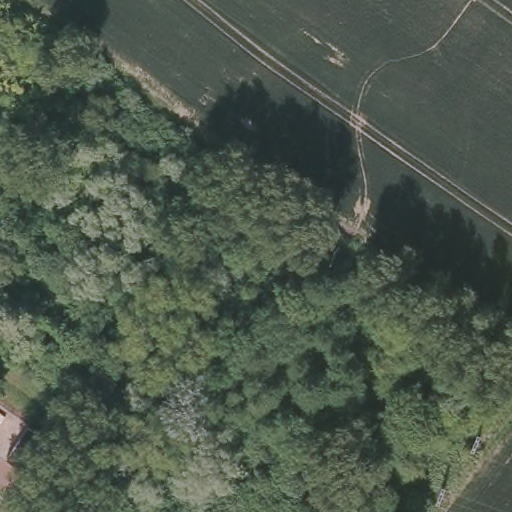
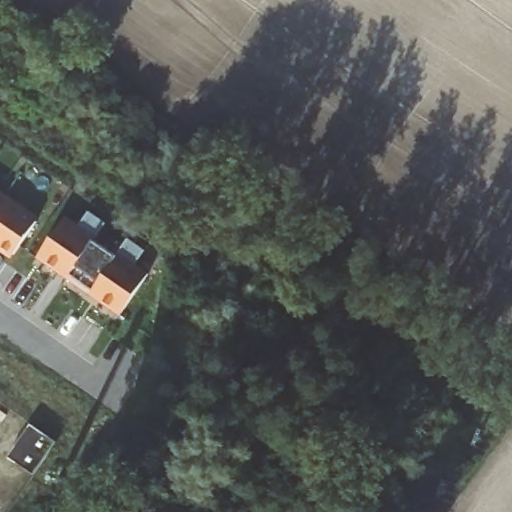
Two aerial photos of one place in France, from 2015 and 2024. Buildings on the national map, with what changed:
demolished [(176,199),(187,207),(171,231),(160,224),(176,199)]
new [(29,225),(7,258),(0,254),(0,206),(29,225)]
new [(70,228),(80,214),(97,226),(87,240),(109,255),(119,241),(137,253),(127,268),(140,277),(112,318),(82,297),(83,294),(62,280),(60,281),(29,261),(57,219),(70,228)]
unchanged [(50,445),(27,478),(2,460),(24,428),(50,445)]

